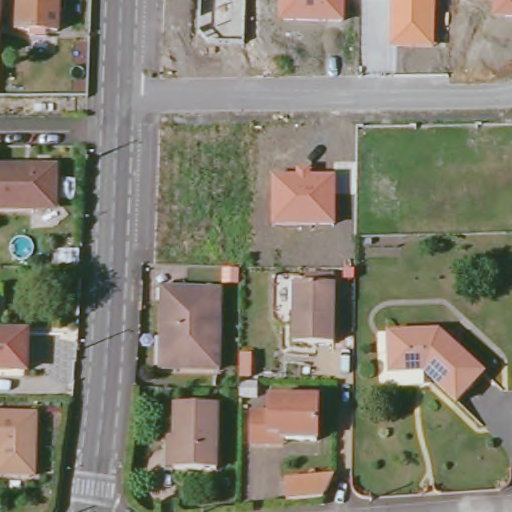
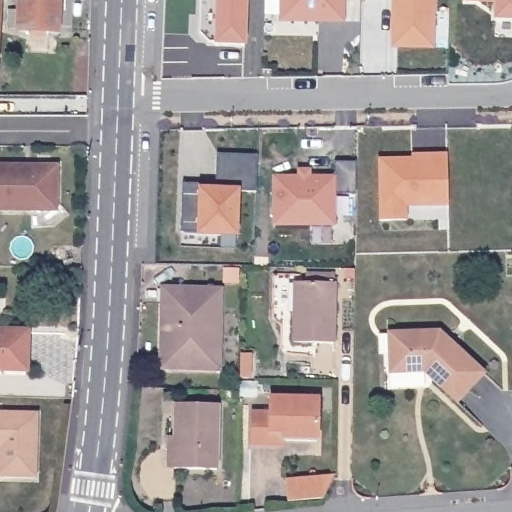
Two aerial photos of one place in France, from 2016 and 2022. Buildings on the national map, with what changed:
unchanged [(60,0),(58,32),(14,31),(10,31),(11,10),(14,10),(18,11),(19,0),(60,0)]
unchanged [(198,32),(199,0),(245,0),(243,43),(208,42),(198,32)]
new [(278,0),(278,22),(261,22),(262,0),(278,0)]
unchanged [(278,0),(345,0),(344,23),(278,20),(278,0)]
unchanged [(392,0),(435,0),(434,49),(392,47),(392,0)]
unchanged [(493,4),(464,2),(465,0),(512,0),(512,19),(493,20),(493,4)]
new [(2,21),(0,21),(0,2),(3,2),(2,21)]
new [(0,55),(0,36),(1,36),(0,55)]
new [(377,157),(412,157),(412,154),(448,153),(448,207),(407,206),(407,221),(378,222),(377,157)]
unchanged [(41,206),(0,205),(0,161),(27,162),(52,161),(53,198),(41,206)]
new [(221,242),(180,241),(182,191),(201,192),(201,197),(215,197),(216,161),(257,162),(256,200),(238,199),(236,238),(236,243),(221,242)]
unchanged [(271,175),(296,175),(296,169),(311,169),(311,175),(336,175),(336,227),(270,227),(271,175)]
unchanged [(290,341),(293,281),(334,282),(331,342),(290,341)]
unchanged [(161,332),(163,302),(163,290),(183,291),(221,292),(218,374),(167,372),(159,372),(161,332)]
unchanged [(407,375),(388,376),(388,368),(385,335),(436,331),(484,371),(457,402),(433,382),(421,373),(407,375)]
unchanged [(0,333),(26,333),(26,370),(0,369),(0,333)]
unchanged [(271,447),(252,446),(253,413),(270,414),(271,398),(319,400),(318,442),(281,441),(280,447),(271,447)]
unchanged [(33,476),(0,475),(0,412),(35,412),(33,476)]
unchanged [(169,471),(171,412),(216,413),(213,472),(169,471)]
unchanged [(282,498),(281,478),(331,473),(319,496),(282,498)]

